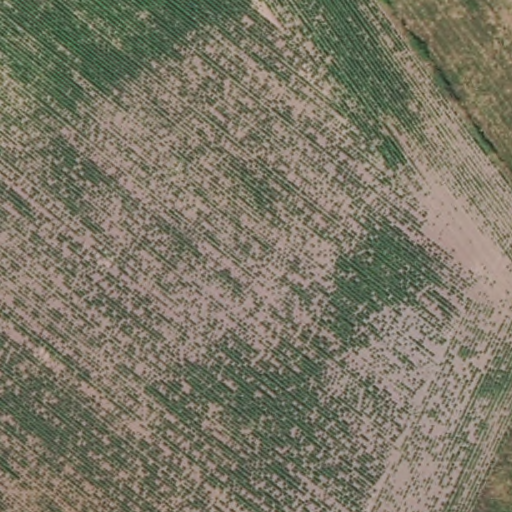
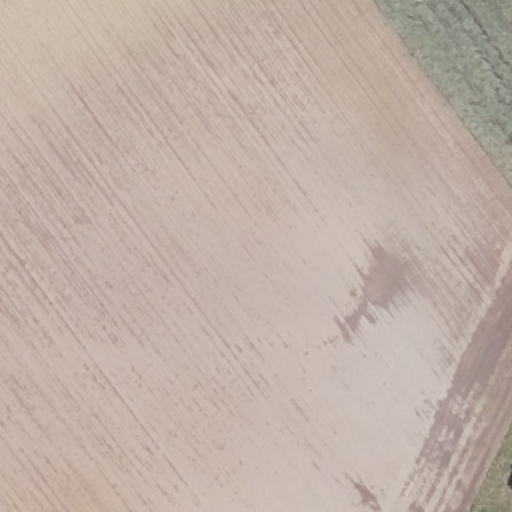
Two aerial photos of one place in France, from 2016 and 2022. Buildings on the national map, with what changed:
[]

